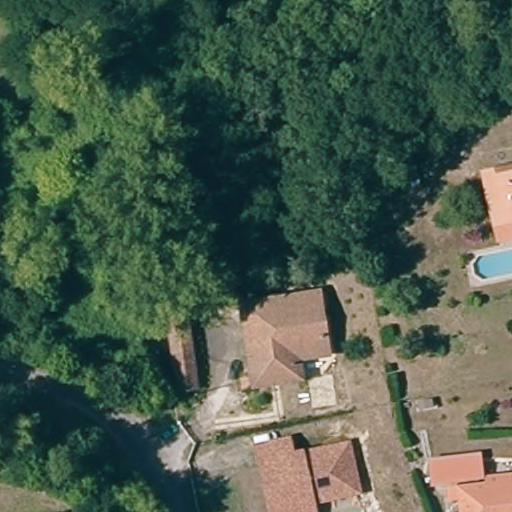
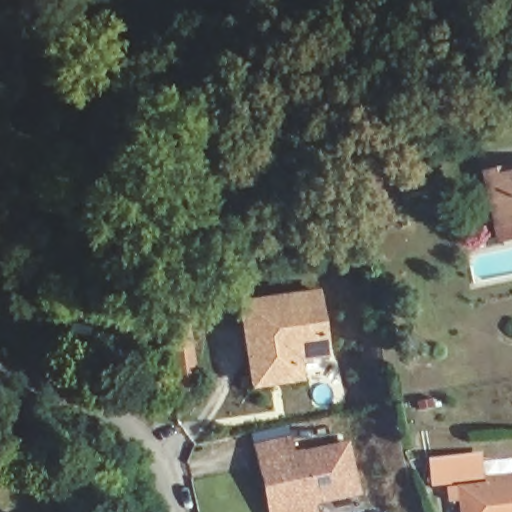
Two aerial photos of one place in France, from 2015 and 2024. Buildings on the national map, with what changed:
unchanged [(420,181),(408,185),(403,166),(415,163),(420,181)]
unchanged [(501,240),(498,225),(487,174),(506,169),(512,168),(512,238),(501,240)]
unchanged [(251,388),(250,378),(238,305),(316,293),(326,355),(288,361),(290,372),(292,382),(251,388)]
unchanged [(177,389),(169,332),(167,316),(184,314),(185,330),(194,387),(177,389)]
unchanged [(258,460),(255,443),(286,437),(289,452),(345,441),(355,488),(309,498),(312,512),(269,512),(267,506),(258,460)]
unchanged [(483,471),(449,476),(450,478),(436,480),(433,457),(480,450),(483,471)]
unchanged [(466,512),(464,495),(453,496),(452,486),(462,484),(490,481),(490,475),(512,473),(512,512),(466,512)]
unchanged [(56,512),(37,512),(54,506),(56,512)]

